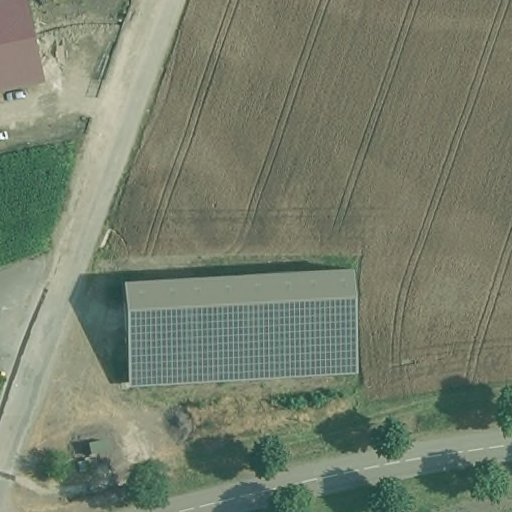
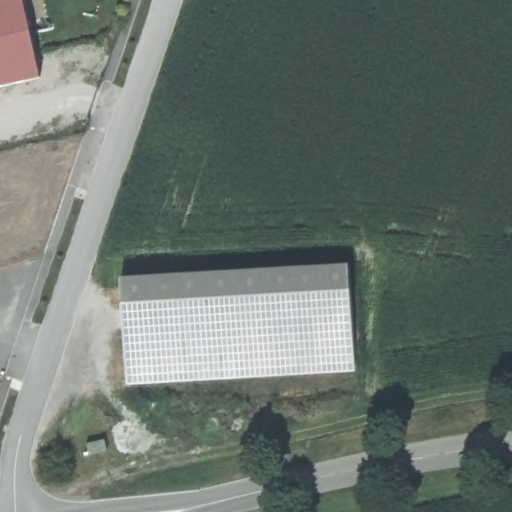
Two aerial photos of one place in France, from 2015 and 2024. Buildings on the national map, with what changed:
unchanged [(42,74),(0,83),(0,0),(26,0),(42,74)]
unchanged [(127,282),(357,270),(362,364),(134,377),(127,282)]

